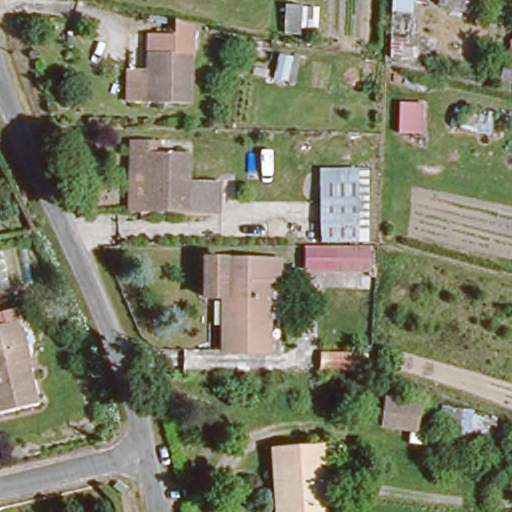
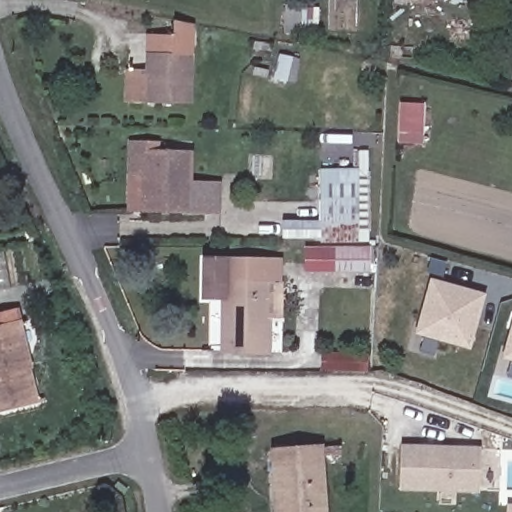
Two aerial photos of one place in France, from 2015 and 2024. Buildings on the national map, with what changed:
unchanged [(409,37),(436,42),(432,67),(383,58),(388,0),(416,0),(409,37)]
unchanged [(468,9),(426,0),(470,0),(468,9)]
unchanged [(190,100),(127,99),(128,69),(147,69),(146,32),(167,32),(167,14),(190,20),(190,100)]
unchanged [(512,30),(512,80),(498,77),(512,30)]
unchanged [(428,101),(426,136),(396,136),(398,99),(428,101)]
unchanged [(144,149),(184,149),(184,177),(215,177),(214,204),(142,205),(143,171),(124,170),(124,141),(144,141),(144,149)]
unchanged [(304,272),(304,242),(319,242),(320,167),(372,168),(371,269),(304,272)]
unchanged [(230,345),(222,345),(222,288),(202,288),(203,251),(234,252),(230,345)]
unchanged [(275,254),(275,273),(266,273),(266,346),(230,345),(234,252),(275,254)]
new [(432,278),(485,292),(470,345),(417,330),(432,278)]
unchanged [(33,396),(0,402),(0,317),(10,315),(33,396)]
new [(512,356),(503,354),(512,325),(512,356)]
new [(319,353),(366,354),(366,372),(319,371),(319,353)]
demolished [(412,427),(377,423),(381,399),(415,403),(412,427)]
new [(403,446),(482,449),(481,491),(401,488),(403,446)]
unchanged [(273,512),(273,504),(270,448),(280,448),(319,448),(322,512),(273,512)]
new [(512,503),(512,512),(506,512),(506,503),(512,503)]

